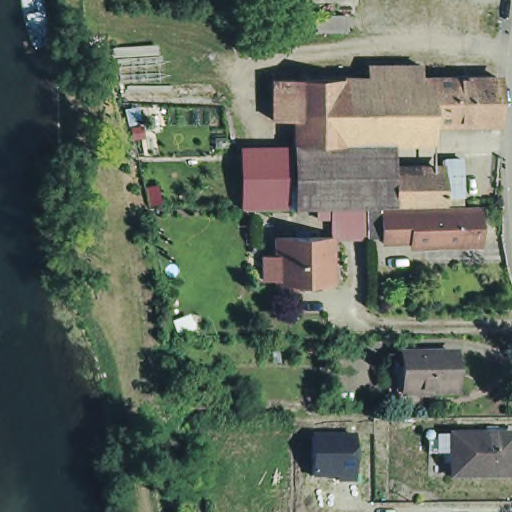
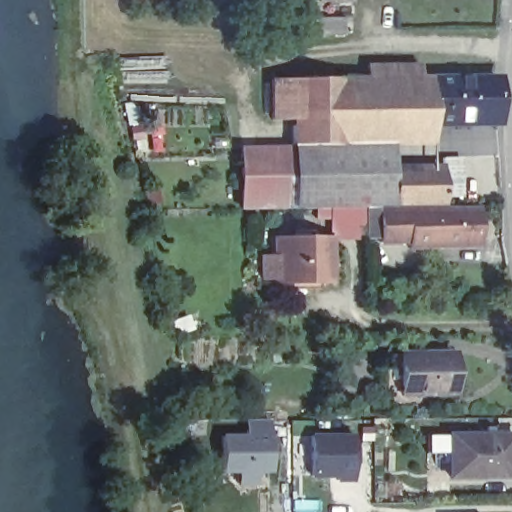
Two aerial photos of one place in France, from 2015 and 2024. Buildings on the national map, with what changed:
unchanged [(345,47),(317,47),(318,29),(346,30),(345,47)]
unchanged [(387,202),(248,204),(247,142),(293,141),(292,118),(274,118),(274,70),(366,67),(366,54),(430,55),(429,66),(499,66),(499,114),(441,118),(440,138),(399,139),(397,158),(468,159),(468,198),(484,200),(483,242),(387,245),(387,202)]
unchanged [(275,283),(278,231),(341,233),(337,283),(275,283)]
unchanged [(416,388),(401,388),(401,369),(400,350),(415,349),(468,348),(469,369),(469,387),(416,388)]
new [(269,473),(258,473),(258,485),(238,485),(238,473),(222,473),(221,434),(245,434),(244,419),(270,419),(269,473)]
unchanged [(459,475),(459,450),(432,450),(432,431),(458,431),(459,432),(512,432),(512,475),(459,475)]
unchanged [(312,434),(356,433),(356,483),(336,483),(337,477),(311,478),(312,434)]

